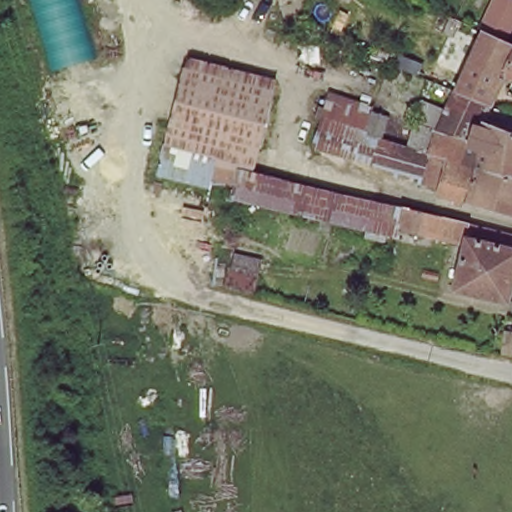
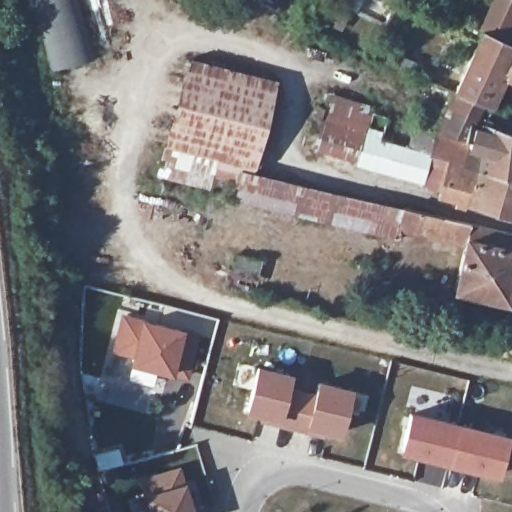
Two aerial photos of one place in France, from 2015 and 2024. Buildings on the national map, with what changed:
unchanged [(99,56),(56,68),(36,0),(83,0),(99,56)]
unchanged [(482,28),(494,0),(512,0),(512,24),(505,39),(482,28)]
unchanged [(505,39),(512,43),(512,79),(504,75),(490,105),(454,90),(482,28),(505,39)]
unchanged [(236,162),(178,147),(163,144),(182,73),(270,94),(251,166),(236,162)]
unchanged [(479,167),(482,144),(437,129),(454,90),(490,105),(481,125),(512,136),(512,177),(479,167)]
unchanged [(390,115),(384,139),(375,166),(314,147),(328,97),(390,115)]
unchanged [(442,193),(444,187),(375,166),(384,139),(404,145),(412,121),(437,129),(482,144),(479,167),(512,177),(512,215),(442,193)]
unchanged [(378,198),(403,204),(397,227),(394,239),(228,197),(236,162),(251,166),(378,198)]
unchanged [(468,221),(463,244),(397,227),(403,204),(468,221)]
unchanged [(468,221),(512,232),(512,274),(504,306),(451,292),(463,244),(468,221)]
new [(198,321),(193,376),(128,369),(130,344),(113,342),(116,312),(198,321)]
new [(290,376),(286,391),(315,398),(318,383),(348,390),(338,433),(308,424),(306,432),(275,424),(277,415),(248,408),(258,368),(290,376)]
new [(467,425),(458,467),(409,455),(418,412),(467,425)]
new [(512,437),(512,451),(505,482),(458,467),(467,425),(512,437)]
new [(146,512),(137,476),(179,464),(192,512),(146,512)]

